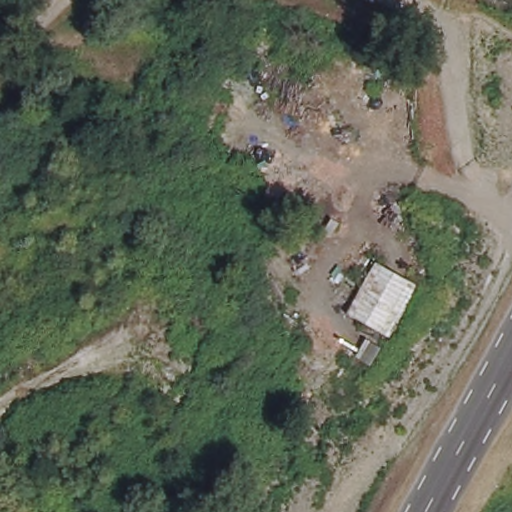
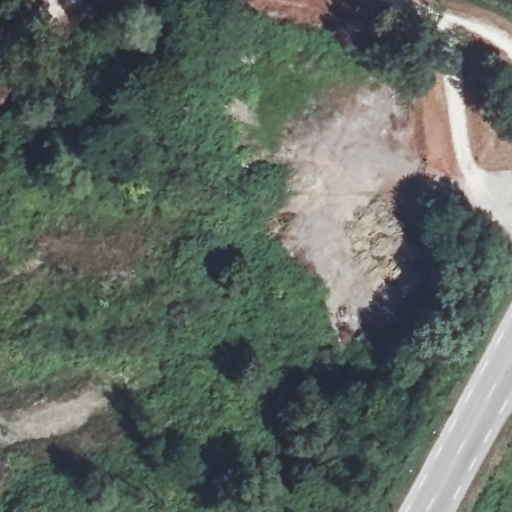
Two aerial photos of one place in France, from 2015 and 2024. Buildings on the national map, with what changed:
demolished [(423,282),(388,341),(343,313),(375,255),(423,282)]

